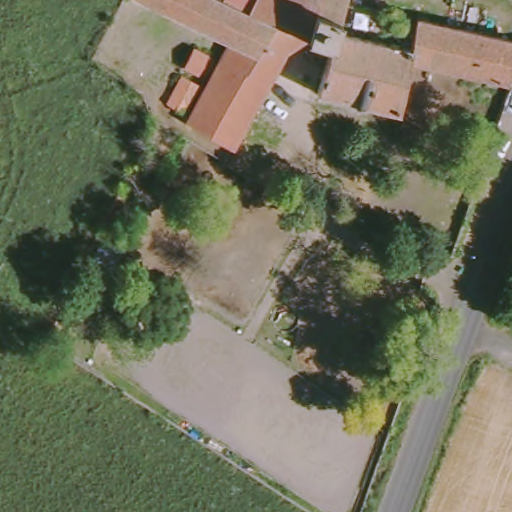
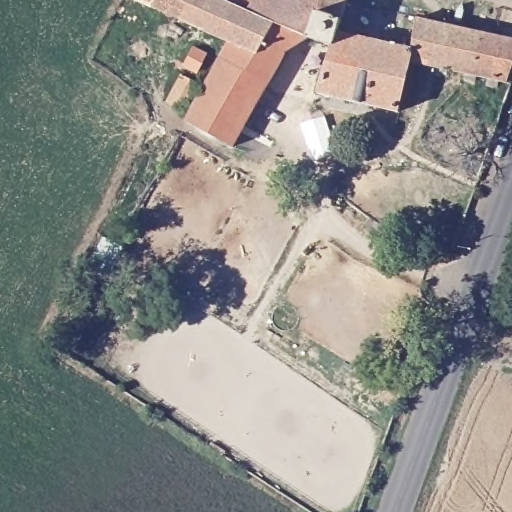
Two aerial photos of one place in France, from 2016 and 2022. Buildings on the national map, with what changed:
unchanged [(261,0),(358,0),(350,30),(345,29),(338,49),(310,41),(290,59),(245,151),(197,126),(235,50),(136,0),(219,0),(252,17),(261,0)]
unchanged [(427,15),(512,38),(512,88),(413,61),(412,61),(415,50),(427,15)]
unchanged [(345,29),(350,30),(415,50),(412,61),(413,61),(397,116),(325,94),(338,49),(345,29)]

